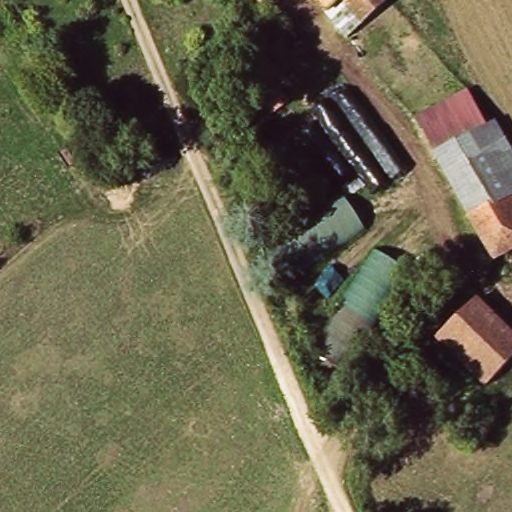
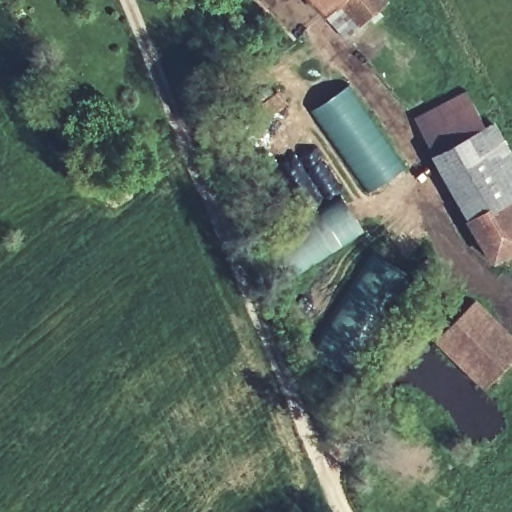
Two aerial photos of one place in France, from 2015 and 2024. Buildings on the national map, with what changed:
unchanged [(329,20),(311,0),(386,0),(390,4),(364,29),(343,9),(329,20)]
unchanged [(484,127),(496,122),(512,153),(512,256),(493,267),(433,157),(414,119),(467,91),(484,127)]
new [(352,106),(356,102),(371,122),(382,132),(400,157),(403,169),(372,191),(318,113),(344,95),(352,106)]
demolished [(379,144),(382,142),(402,174),(391,182),(388,184),(367,151),(379,144)]
unchanged [(364,231),(282,277),(261,245),(341,197),(364,231)]
unchanged [(408,275),(347,374),(318,356),(377,257),(408,275)]
unchanged [(485,387),(480,390),(443,351),(438,345),(475,306),(512,343),(512,358),(485,387)]

